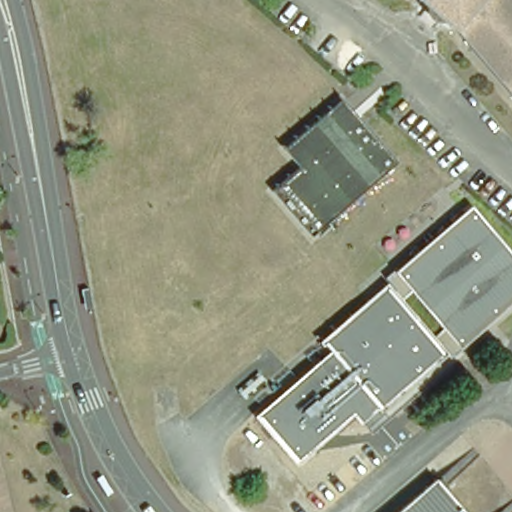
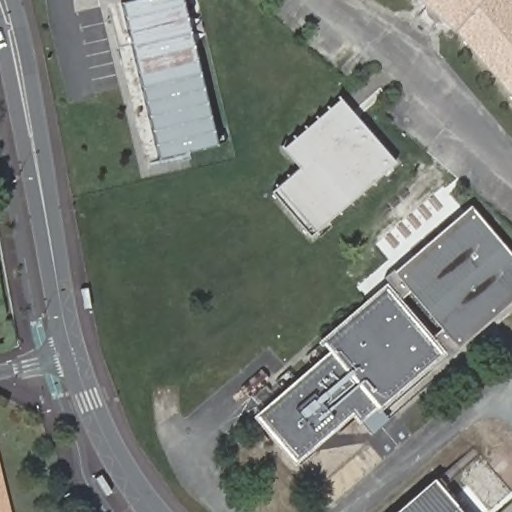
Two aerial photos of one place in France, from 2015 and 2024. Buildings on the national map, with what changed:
new [(158,159),(120,1),(124,0),(184,0),(218,144),(158,159)]
unchanged [(512,0),(512,97),(450,25),(447,28),(414,0),(512,0)]
unchanged [(313,236),(273,192),(302,168),(285,148),(333,107),(342,99),(358,117),(398,162),(313,236)]
unchanged [(383,281),(394,270),(472,206),(512,254),(512,302),(461,346),(449,357),(441,349),(386,284),(383,281)]
unchanged [(377,404),(367,393),(292,457),(255,413),(331,349),(321,339),(386,284),(441,349),(377,404)]
unchanged [(436,481),(461,512),(399,512),(436,481)]
unchanged [(0,500),(3,512),(0,512),(0,500)]

